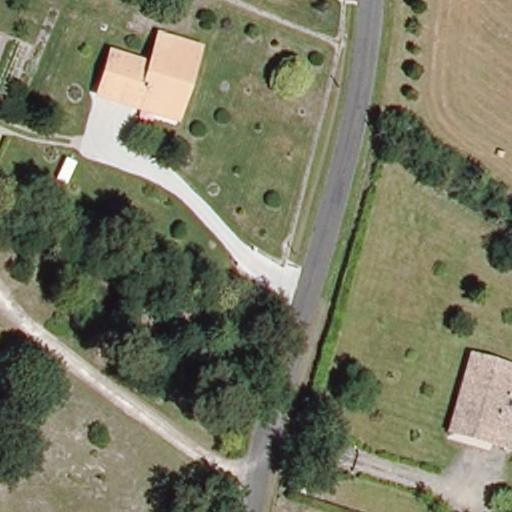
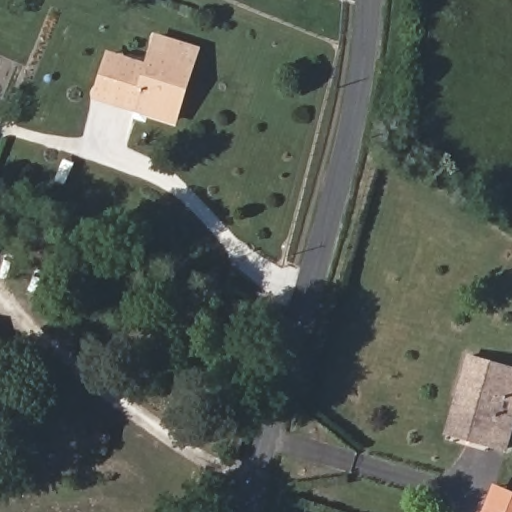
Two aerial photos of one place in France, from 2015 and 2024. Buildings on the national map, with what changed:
unchanged [(154,35),(195,47),(175,117),(97,94),(109,55),(145,66),(154,35)]
unchanged [(449,426),(469,353),(512,366),(512,383),(507,402),(512,404),(512,430),(508,444),(449,426)]
new [(481,512),(493,482),(512,490),(512,512),(481,512)]

